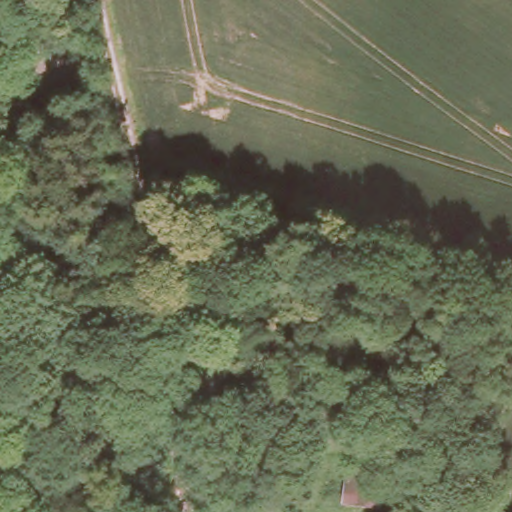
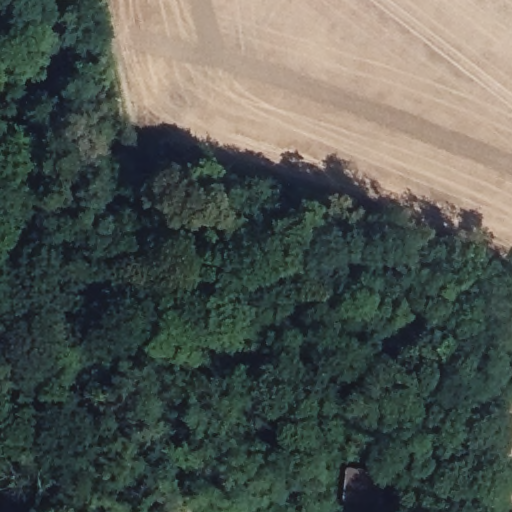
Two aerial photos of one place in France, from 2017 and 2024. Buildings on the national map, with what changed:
unchanged [(114,159),(112,171),(106,171),(93,170),(95,157),(104,158),(114,159)]
unchanged [(369,505),(324,501),(329,468),(374,472),(369,505)]

